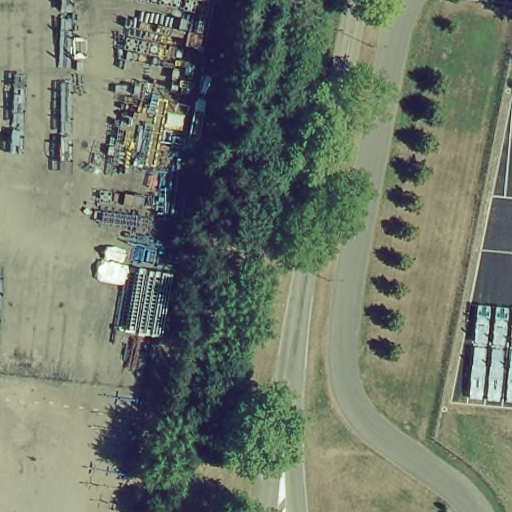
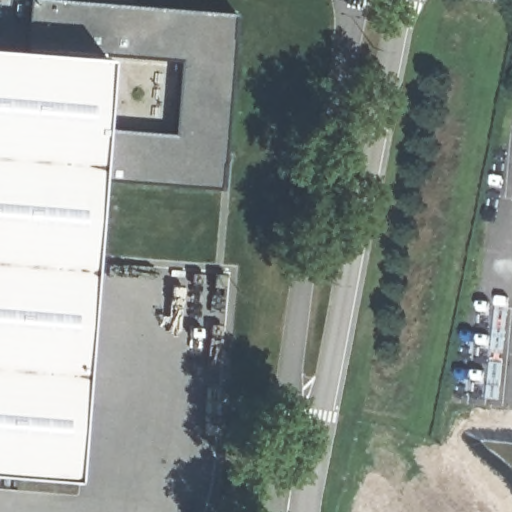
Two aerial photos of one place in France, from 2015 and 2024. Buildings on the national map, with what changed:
new [(69,474),(0,469),(0,47),(23,49),(28,0),(69,0),(233,12),(219,185),(92,180),(69,474)]
demolished [(183,277),(174,338),(123,331),(131,268),(183,277)]

